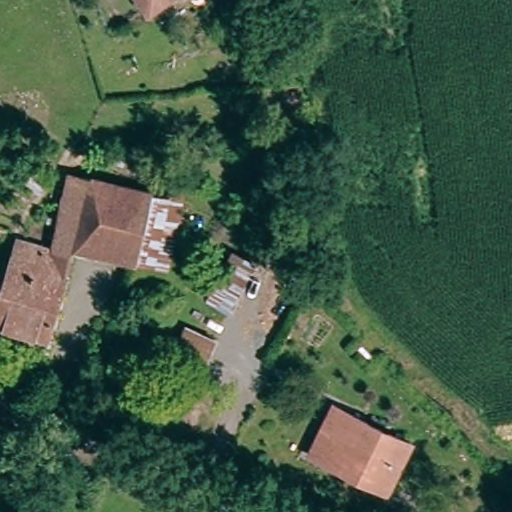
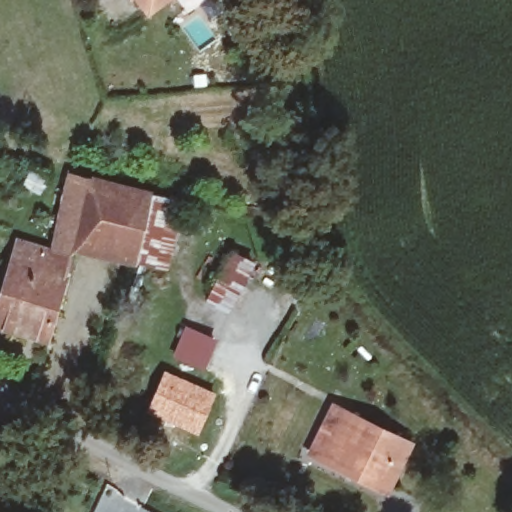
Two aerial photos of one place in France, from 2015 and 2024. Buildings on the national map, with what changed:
unchanged [(144,9),(137,0),(155,0),(144,9)]
unchanged [(34,286),(30,298),(1,291),(17,238),(51,248),(74,176),(156,197),(152,211),(136,263),(76,245),(61,293),(34,286)]
unchanged [(152,211),(181,215),(162,272),(136,263),(152,211)]
unchanged [(275,300),(281,303),(269,332),(257,327),(260,315),(236,302),(230,313),(205,300),(230,249),(259,262),(254,276),(279,287),(275,300)]
unchanged [(0,292),(1,291),(30,298),(34,286),(61,293),(46,340),(0,326),(0,292)]
unchanged [(226,335),(215,367),(182,355),(195,323),(226,335)]
new [(163,369),(216,392),(197,436),(144,413),(163,369)]
unchanged [(322,461),(314,457),(340,405),(348,408),(416,443),(396,485),(391,496),(352,477),(322,461)]

